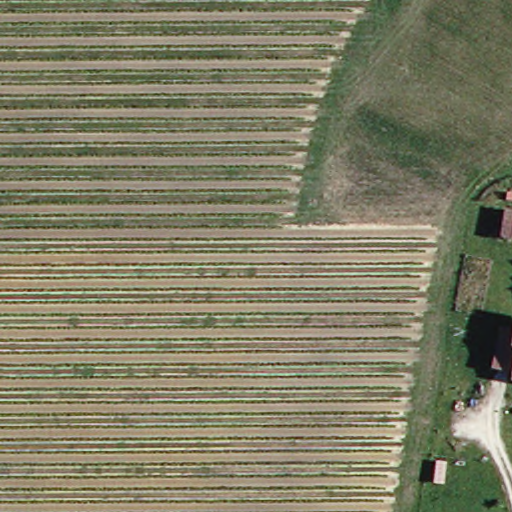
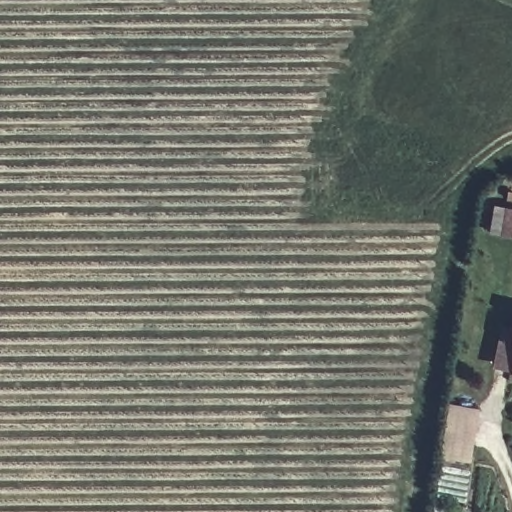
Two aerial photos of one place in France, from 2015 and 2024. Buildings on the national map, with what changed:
unchanged [(503,213),(512,215),(512,240),(500,239),(503,213)]
unchanged [(512,358),(512,378),(507,377),(512,358)]
new [(471,462),(439,457),(447,403),(479,408),(471,462)]

